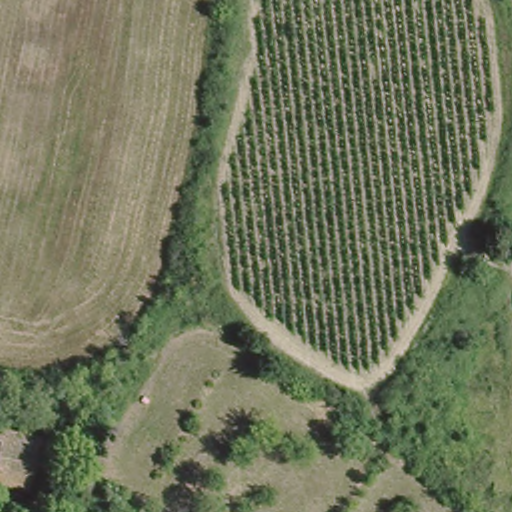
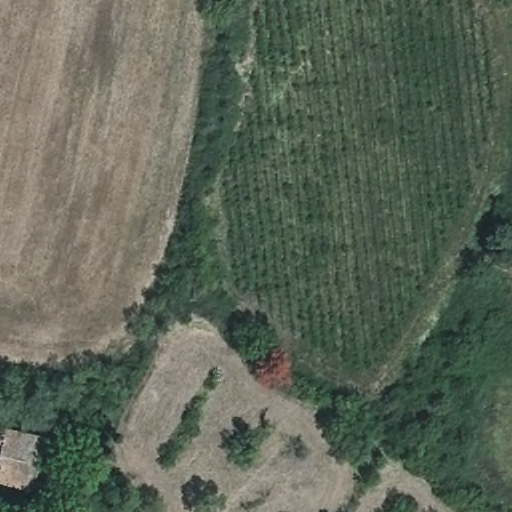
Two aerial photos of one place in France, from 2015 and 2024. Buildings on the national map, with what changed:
unchanged [(26,492),(0,485),(0,427),(43,441),(26,492)]

